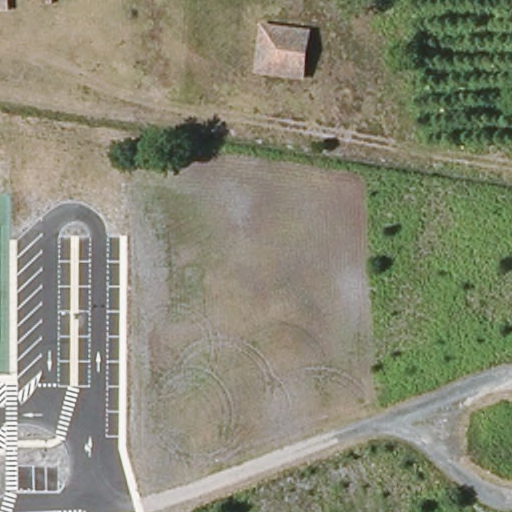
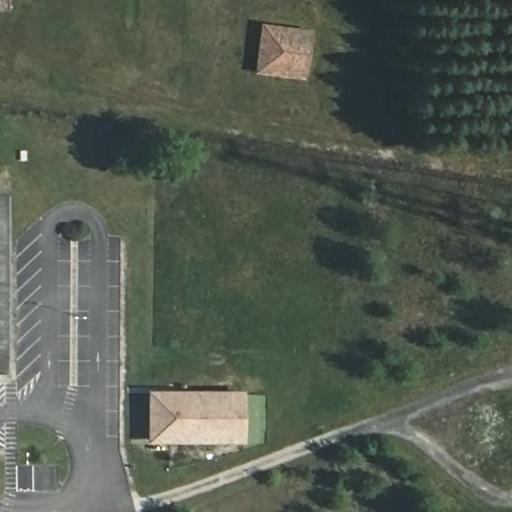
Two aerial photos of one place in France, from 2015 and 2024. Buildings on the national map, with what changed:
unchanged [(309,32),(302,80),(253,74),(258,27),(309,32)]
new [(147,390),(245,390),(245,442),(147,442),(147,390)]

